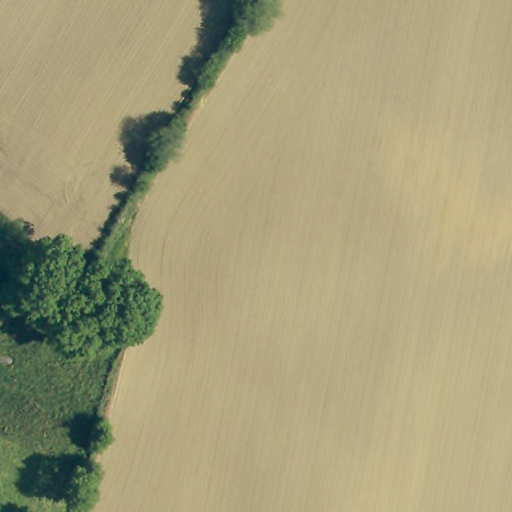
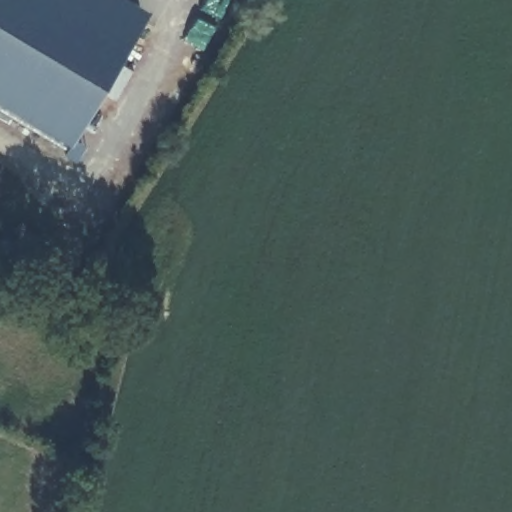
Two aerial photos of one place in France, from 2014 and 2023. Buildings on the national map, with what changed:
new [(86,148),(77,162),(64,155),(70,145),(0,103),(0,0),(129,0),(149,12),(78,136),(86,148)]

